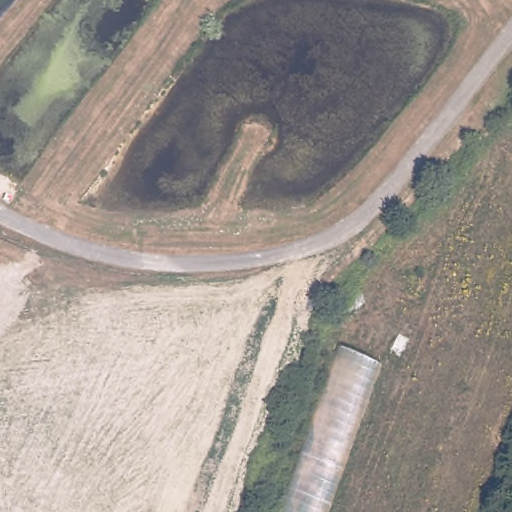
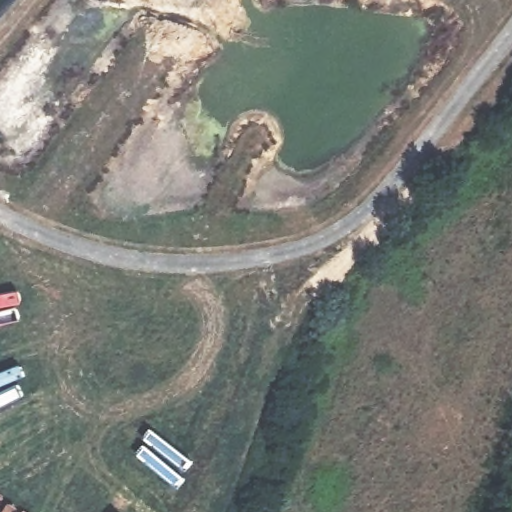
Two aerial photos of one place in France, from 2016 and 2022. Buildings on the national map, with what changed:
demolished [(337,346),(381,363),(328,512),(276,512),(337,346)]

